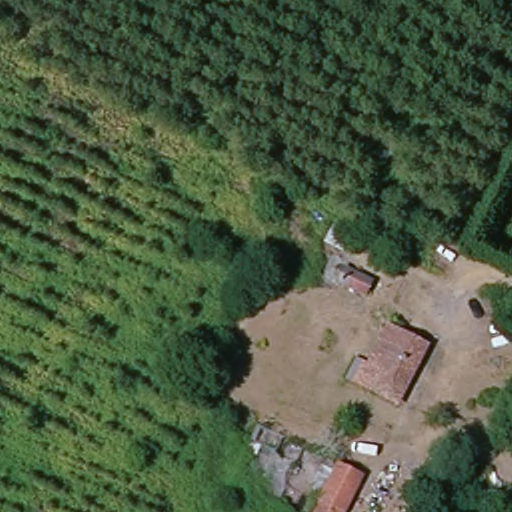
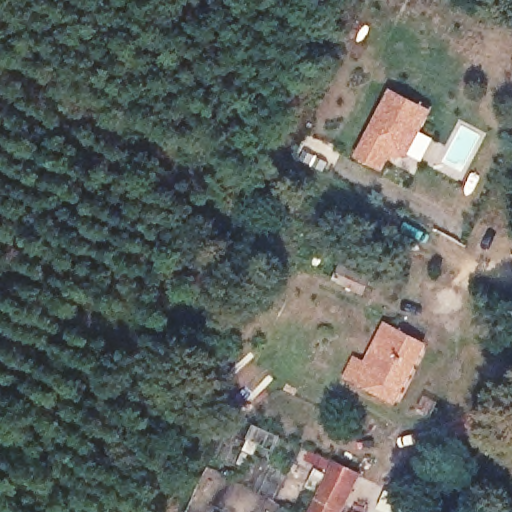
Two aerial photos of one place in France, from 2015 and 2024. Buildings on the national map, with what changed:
new [(437,110),(412,157),(393,160),(386,173),(357,158),(392,88),(437,110)]
unchanged [(364,250),(357,266),(338,257),(346,241),(364,250)]
unchanged [(432,346),(405,403),(365,383),(379,354),(363,346),(377,318),(432,346)]
unchanged [(316,512),(334,461),(365,475),(351,512),(316,512)]

